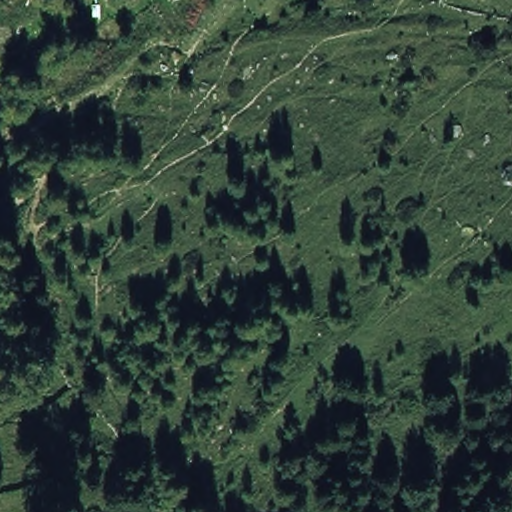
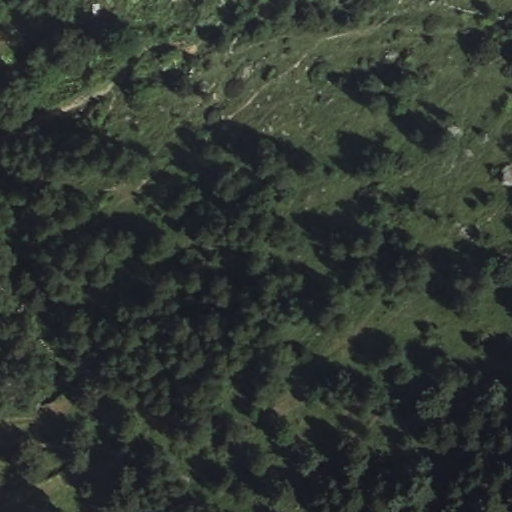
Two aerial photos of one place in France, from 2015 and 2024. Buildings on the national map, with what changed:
[]

